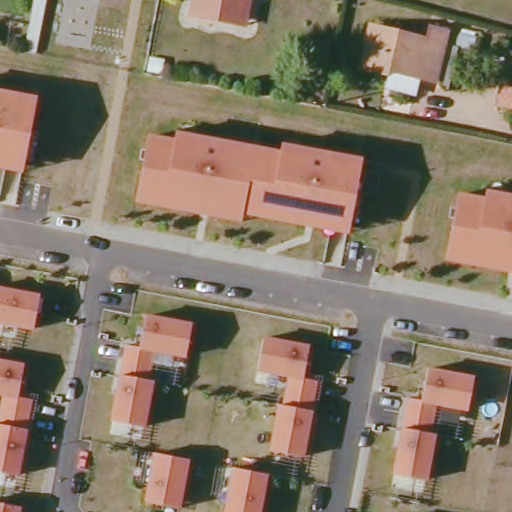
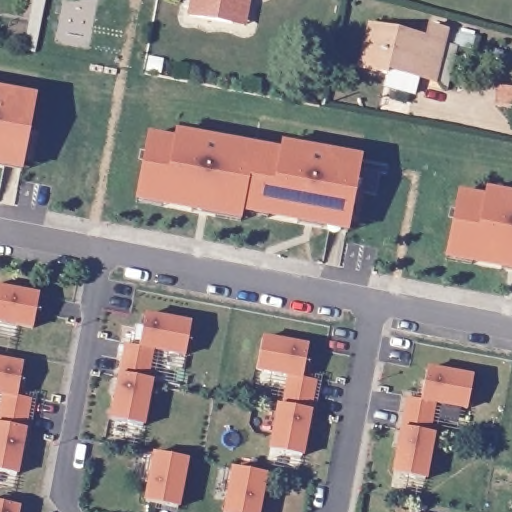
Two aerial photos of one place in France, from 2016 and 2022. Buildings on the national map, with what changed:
unchanged [(25,51),(34,0),(45,0),(35,54),(25,51)]
unchanged [(195,14),(199,0),(255,0),(250,25),(238,22),(195,14)]
unchanged [(373,26),(430,41),(432,30),(448,34),(437,80),(423,76),(420,91),(412,95),(387,88),(390,76),(363,70),(373,26)]
unchanged [(0,92),(36,99),(21,175),(0,170),(0,92)]
unchanged [(240,215),(238,226),(132,205),(146,136),(172,141),(173,133),(277,151),(279,144),(359,160),(347,235),(240,215)]
unchanged [(456,193),(481,198),(483,190),(512,195),(512,275),(442,261),(456,193)]
unchanged [(32,331),(0,325),(0,289),(38,296),(32,331)]
unchanged [(107,422),(117,376),(123,346),(135,348),(142,316),(190,326),(183,359),(151,353),(145,382),(152,384),(143,430),(107,422)]
unchanged [(275,405),(280,406),(286,377),(255,371),(260,338),(307,347),(302,379),(312,384),(308,411),(300,458),(265,451),(275,405)]
unchanged [(15,398),(28,401),(24,430),(16,476),(10,474),(7,491),(0,489),(0,360),(22,365),(15,398)]
unchanged [(398,428),(405,399),(418,401),(425,369),(473,377),(466,414),(432,407),(425,435),(433,437),(425,483),(389,474),(398,428)]
unchanged [(150,454),(188,461),(180,510),(142,504),(150,454)]
unchanged [(228,468),(267,476),(260,512),(220,512),(228,468)]
unchanged [(18,512),(0,512),(0,504),(19,508),(18,512)]

